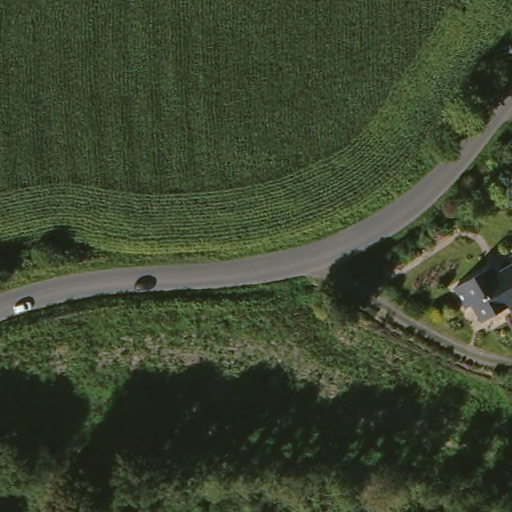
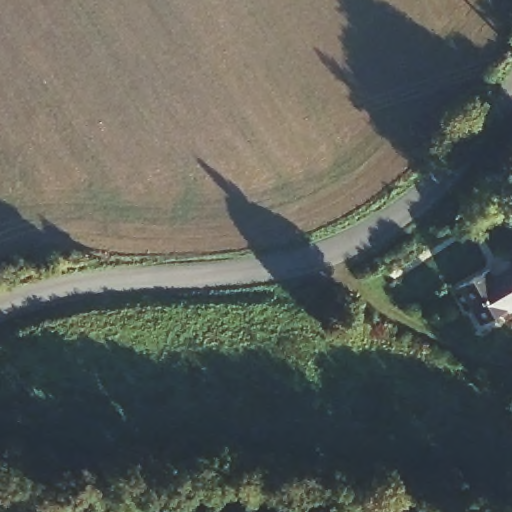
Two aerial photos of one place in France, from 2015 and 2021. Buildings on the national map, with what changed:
unchanged [(511,255),(512,255),(512,256),(511,255)]
unchanged [(500,274),(512,267),(512,304),(485,319),(474,304),(467,308),(454,286),(492,265),(500,274)]

